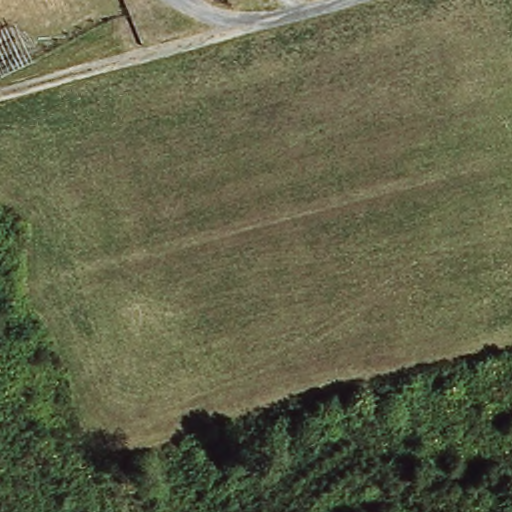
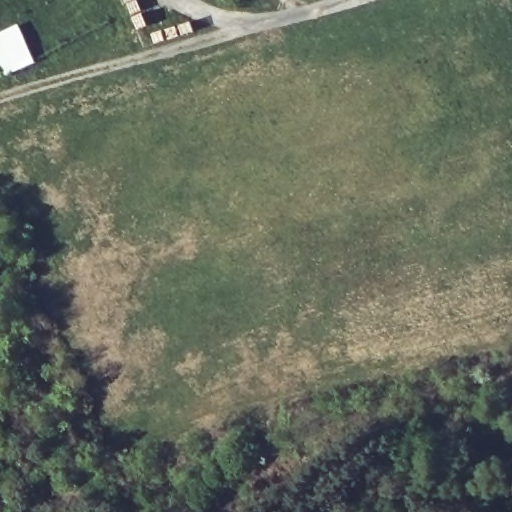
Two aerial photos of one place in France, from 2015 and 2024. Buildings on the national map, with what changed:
new [(0,33),(17,25),(35,62),(4,77),(0,70),(0,33)]

